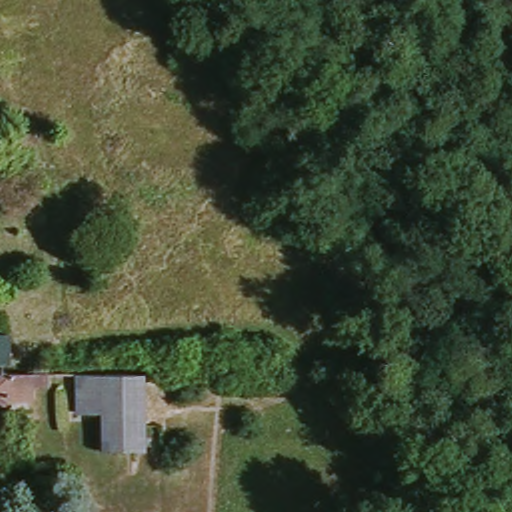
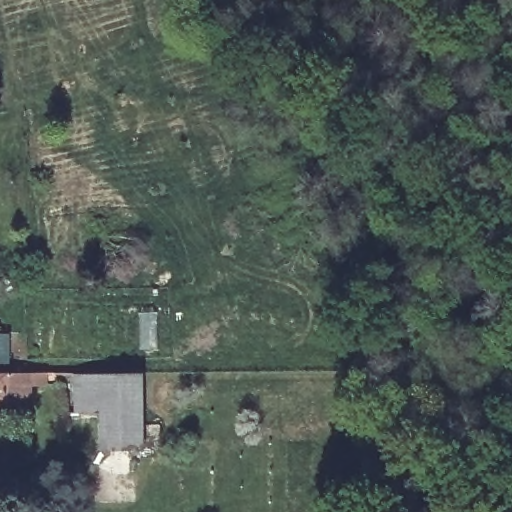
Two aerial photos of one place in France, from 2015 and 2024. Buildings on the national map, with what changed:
unchanged [(31,392),(31,405),(6,405),(6,412),(0,412),(0,378),(42,379),(41,392),(31,392)]
unchanged [(146,378),(147,453),(106,454),(106,421),(68,420),(63,420),(65,379),(146,378)]

